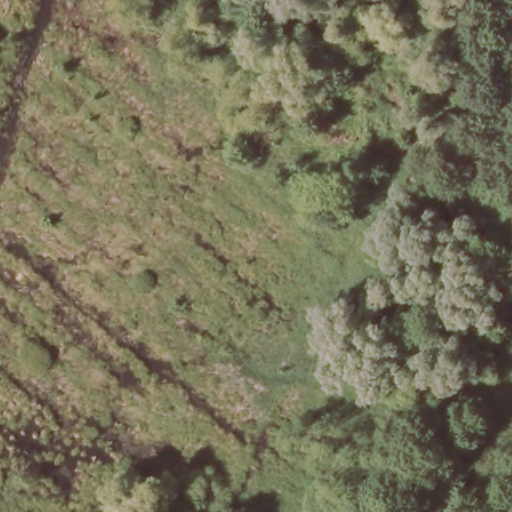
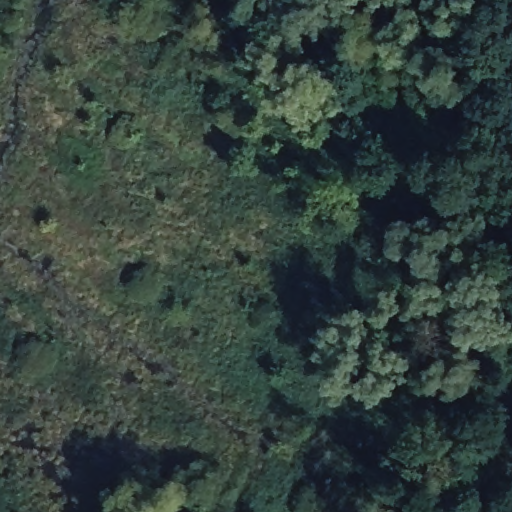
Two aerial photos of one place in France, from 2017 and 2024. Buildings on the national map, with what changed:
unchanged [(358,187),(345,206),(334,195),(349,180),(358,187)]

